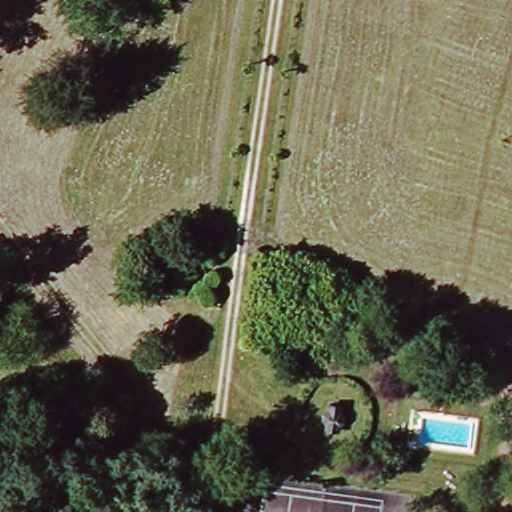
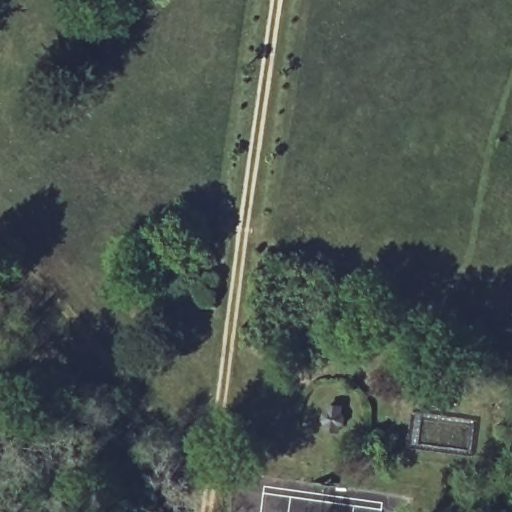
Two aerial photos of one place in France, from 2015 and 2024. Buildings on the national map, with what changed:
unchanged [(348,427),(345,433),(334,433),(334,428),(329,422),(335,413),(349,415),(348,427)]

